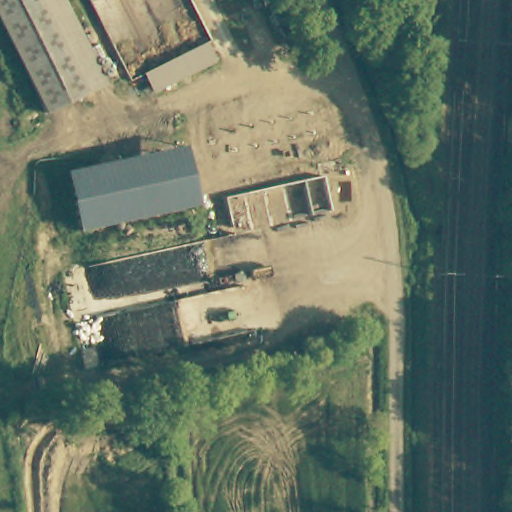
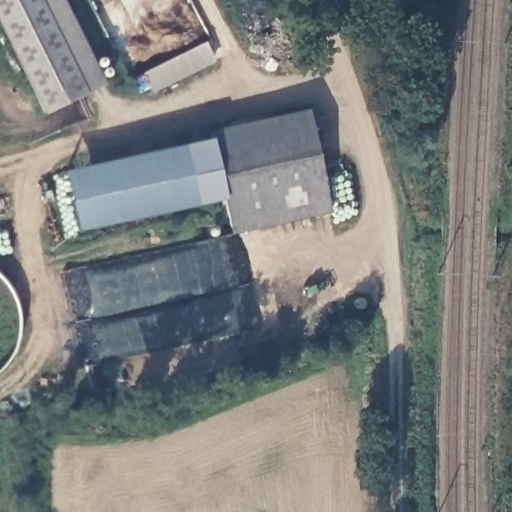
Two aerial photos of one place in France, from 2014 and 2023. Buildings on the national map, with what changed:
unchanged [(0,25),(0,0),(65,0),(103,81),(41,110),(0,25)]
unchanged [(154,94),(142,72),(208,41),(218,61),(154,94)]
new [(212,137),(210,130),(311,108),(333,213),(234,234),(225,199),(196,205),(184,146),(212,137)]
unchanged [(184,146),(196,205),(78,229),(66,170),(184,146)]

